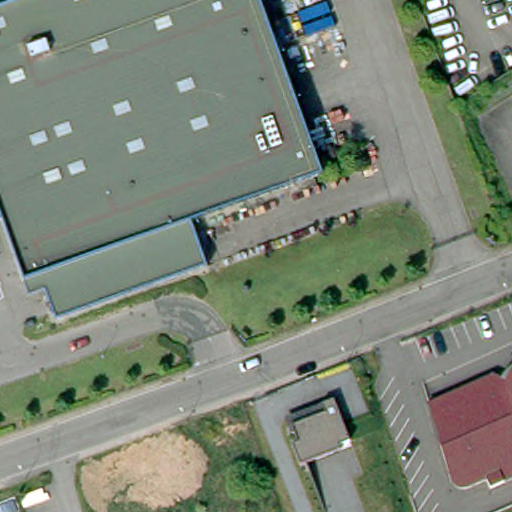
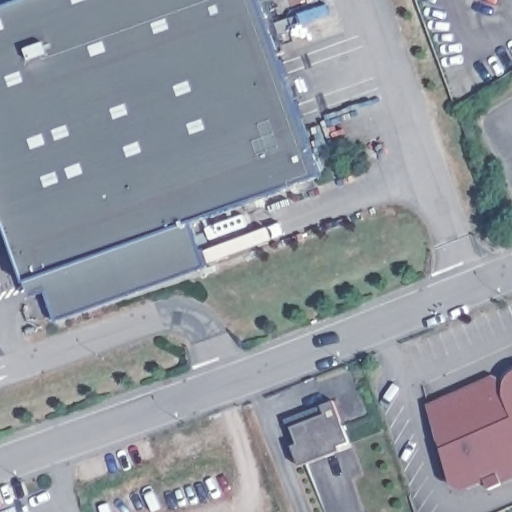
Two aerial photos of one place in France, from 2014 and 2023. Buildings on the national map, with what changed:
unchanged [(0,217),(0,4),(11,0),(263,0),(325,172),(193,218),(208,263),(58,317),(46,286),(30,292),(25,278),(3,216),(0,217)]
unchanged [(451,478),(428,406),(494,378),(506,380),(508,375),(512,372),(512,483),(494,490),(487,478),(468,488),(457,488),(451,478)]
unchanged [(352,449),(303,467),(295,445),(301,443),(294,425),(335,403),(352,449)]

